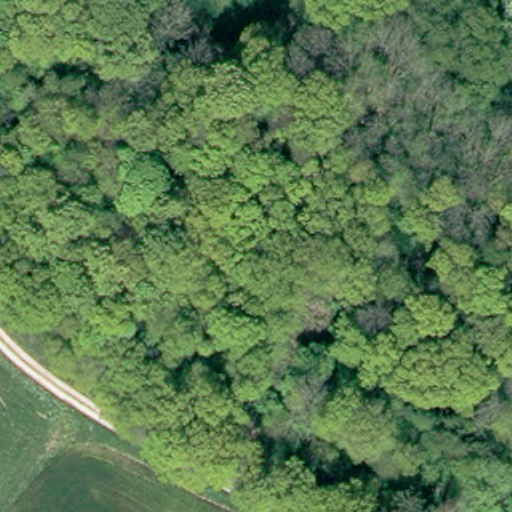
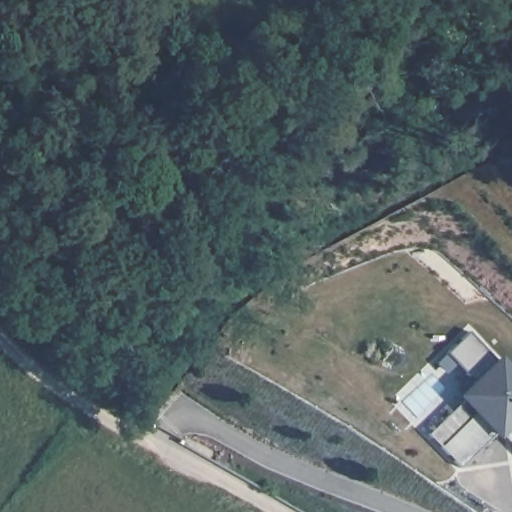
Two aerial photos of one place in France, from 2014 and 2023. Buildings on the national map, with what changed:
new [(456,395),(471,380),(445,356),(470,333),(495,356),(499,353),(512,366),(512,444),(503,434),(499,438),(496,435),(461,469),(440,447),(475,414),(456,395)]

